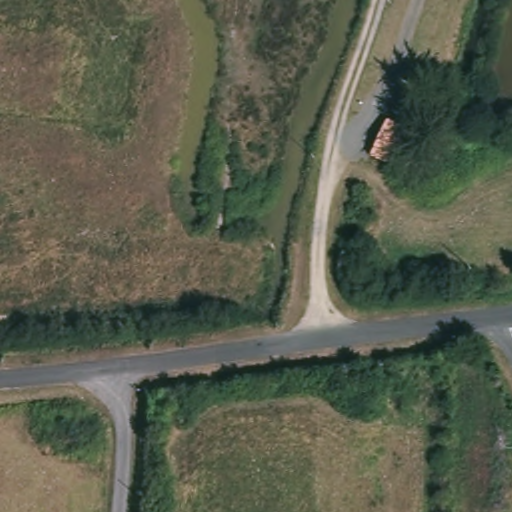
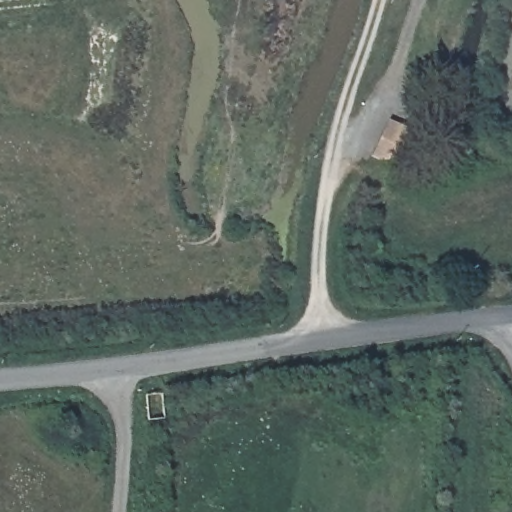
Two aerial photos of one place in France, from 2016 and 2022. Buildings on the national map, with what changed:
unchanged [(443,127),(437,156),(411,152),(420,122),(443,127)]
unchanged [(162,393),(163,419),(148,420),(146,394),(162,393)]

